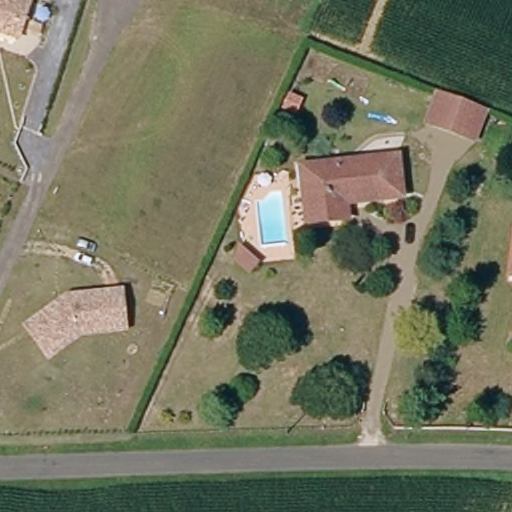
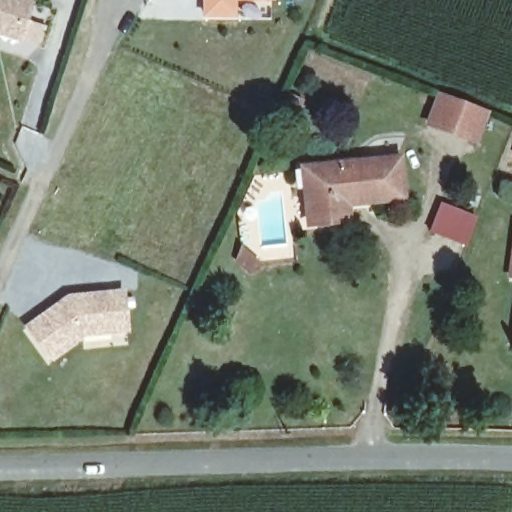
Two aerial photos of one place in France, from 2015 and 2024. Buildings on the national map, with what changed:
unchanged [(22,33),(0,28),(0,0),(32,0),(22,33)]
new [(275,0),(236,1),(236,17),(202,17),(202,0),(275,0)]
unchanged [(483,141),(473,138),(435,125),(445,95),(483,108),(493,111),(483,141)]
unchanged [(343,220),(311,224),(308,196),(305,167),(320,166),(400,157),(405,197),(351,202),(352,219),(343,220)]
new [(478,217),(466,247),(429,232),(441,202),(478,217)]
unchanged [(256,278),(240,263),(247,255),(264,271),(256,278)]
unchanged [(22,325),(65,293),(126,287),(129,331),(85,336),(47,362),(22,325)]

